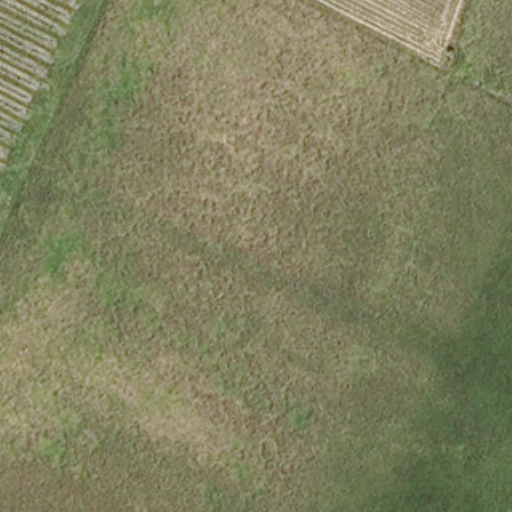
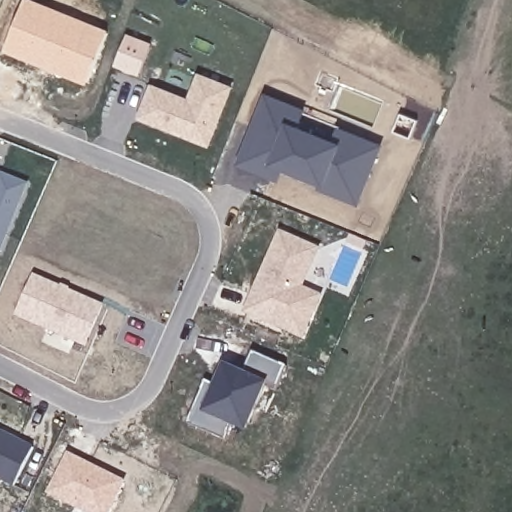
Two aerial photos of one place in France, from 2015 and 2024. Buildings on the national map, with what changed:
new [(24,0),(33,0),(109,30),(87,84),(4,51),(24,0)]
new [(209,148),(138,119),(153,83),(188,98),(197,73),(234,87),(209,148)]
new [(359,206),(317,189),(318,185),(284,171),(279,182),(237,165),(266,93),(307,108),(300,126),(331,139),(333,139),(338,126),(384,144),(359,206)]
new [(30,187),(29,190),(24,188),(0,248),(0,178),(13,180),(30,187)]
new [(304,339),(244,313),(279,231),(321,248),(304,286),(324,295),(304,339)]
new [(16,317),(35,275),(105,305),(86,347),(16,317)]
new [(243,373),(251,356),(284,370),(276,388),(268,384),(247,432),(231,425),(225,440),(187,423),(205,381),(215,385),(224,363),(243,373)]
new [(14,487),(0,480),(0,429),(34,446),(14,487)]
new [(68,452),(126,481),(111,512),(85,512),(47,493),(68,452)]

